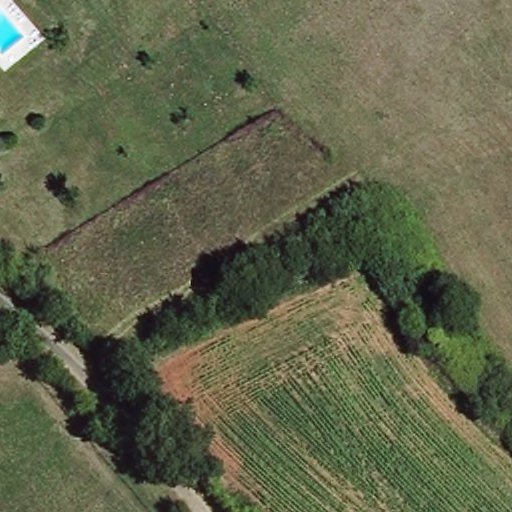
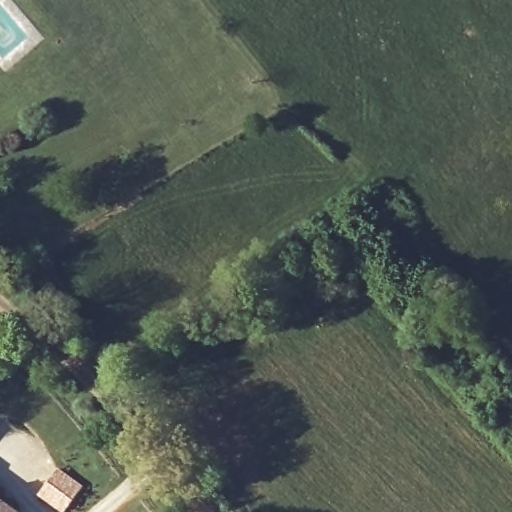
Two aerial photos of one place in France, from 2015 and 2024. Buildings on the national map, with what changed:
new [(84,485),(64,512),(59,512),(35,494),(57,466),(84,485)]
new [(23,512),(0,512),(0,494),(23,512)]

